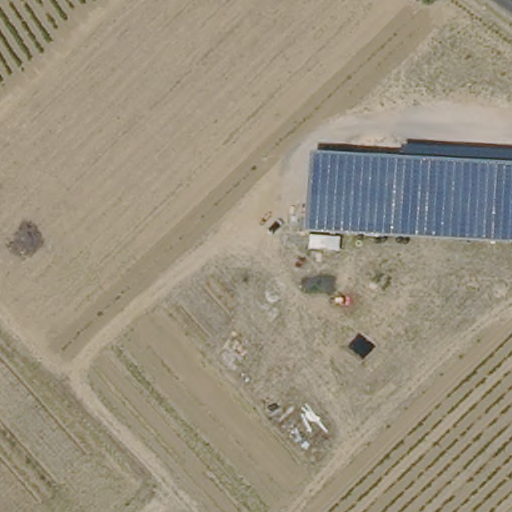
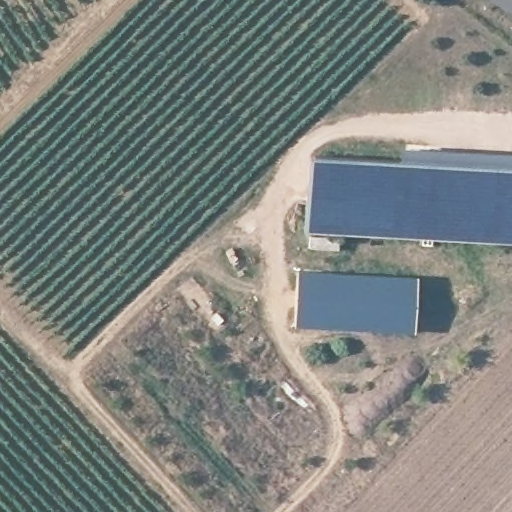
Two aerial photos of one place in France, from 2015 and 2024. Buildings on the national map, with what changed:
unchanged [(399,162),(400,150),(512,154),(512,244),(305,233),(310,156),(399,162)]
new [(298,269),(418,276),(415,333),(375,333),(294,326),(298,269)]

